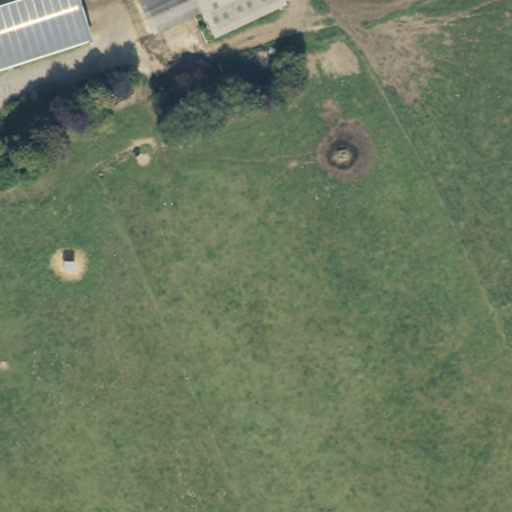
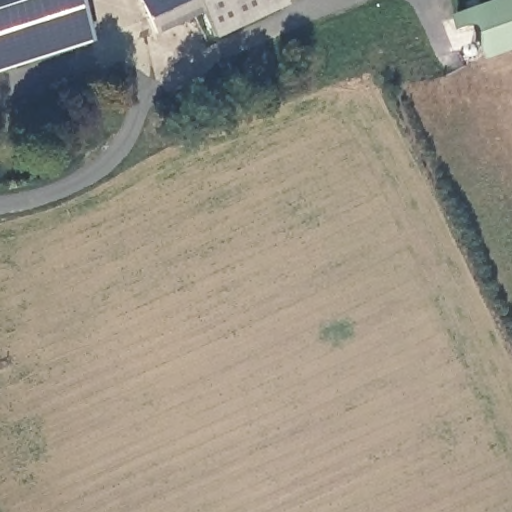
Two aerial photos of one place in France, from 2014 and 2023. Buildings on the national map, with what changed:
unchanged [(0,68),(0,0),(74,0),(86,44),(0,68)]
unchanged [(284,0),(286,3),(215,36),(202,10),(154,33),(138,0),(284,0)]
new [(461,29),(456,14),(496,0),(512,0),(512,51),(490,59),(477,23),(461,29)]

